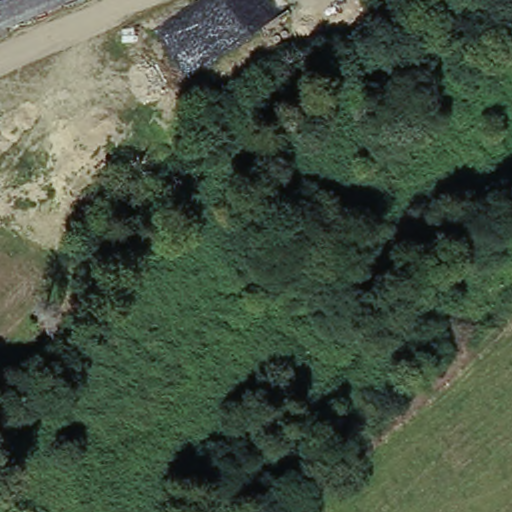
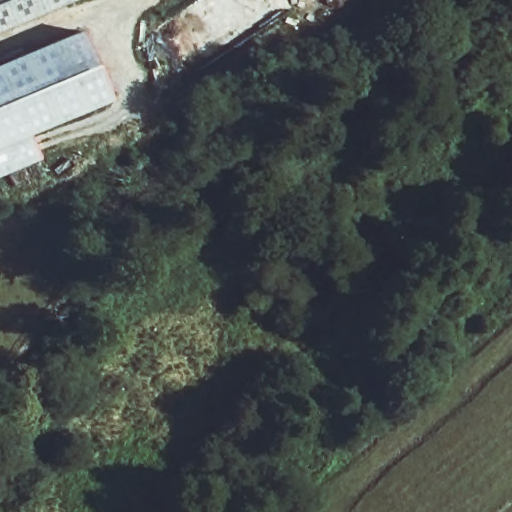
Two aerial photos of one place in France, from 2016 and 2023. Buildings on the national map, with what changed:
unchanged [(0,36),(0,0),(85,0),(0,36)]
new [(28,135),(38,161),(0,176),(0,64),(80,31),(110,100),(28,135)]

